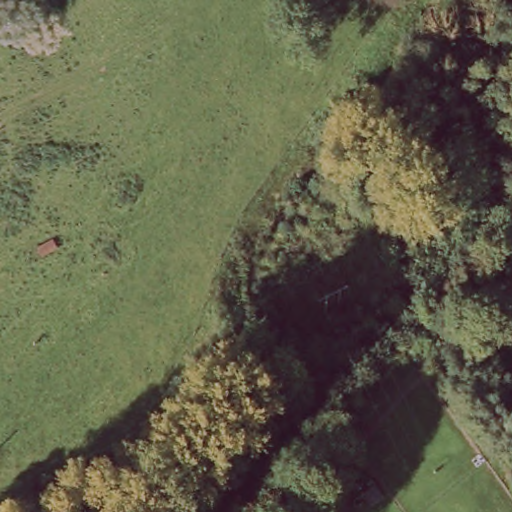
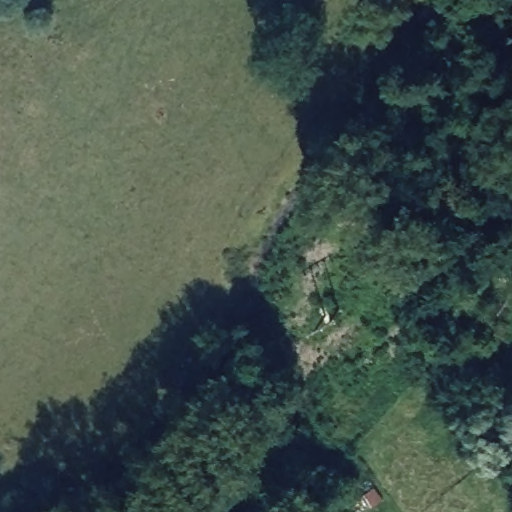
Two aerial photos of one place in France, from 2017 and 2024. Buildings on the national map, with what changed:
[]

